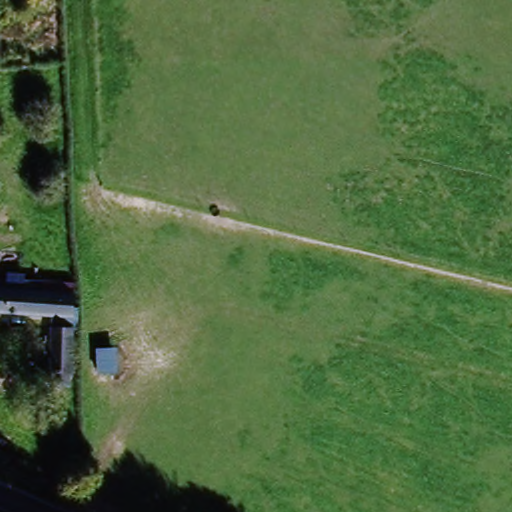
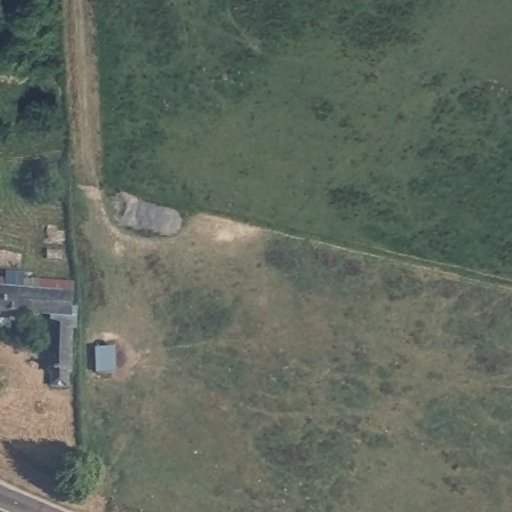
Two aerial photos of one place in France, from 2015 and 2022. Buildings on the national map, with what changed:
unchanged [(45,372),(48,325),(48,312),(30,311),(0,309),(0,287),(8,287),(31,288),(31,278),(64,280),(69,280),(69,290),(70,307),(78,307),(78,325),(71,325),(71,327),(69,375),(51,372),(45,372)]

